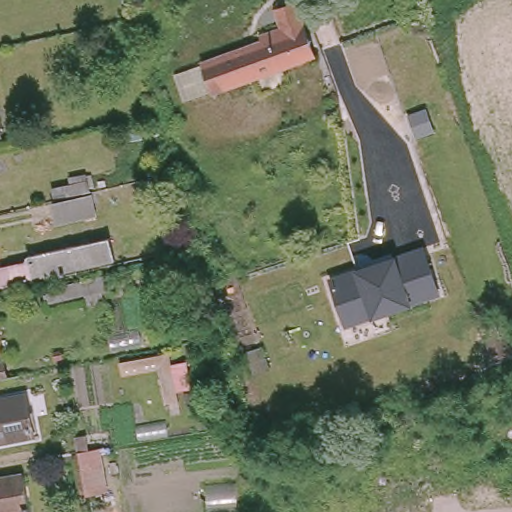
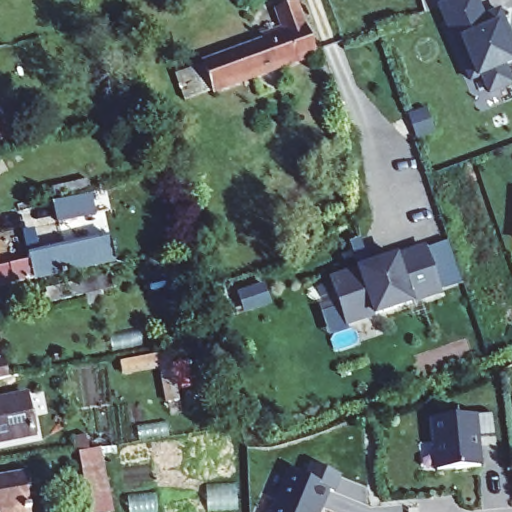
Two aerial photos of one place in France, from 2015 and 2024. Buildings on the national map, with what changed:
new [(453,0),(476,0),(483,17),(499,11),(506,28),(504,29),(507,37),(510,36),(512,42),(512,63),(504,66),(511,83),(489,92),(482,75),(470,80),(439,6),(453,0)]
unchanged [(265,41),(262,33),(282,25),(276,8),(298,1),(317,50),(217,90),(207,64),(265,41)]
unchanged [(96,206),(60,214),(57,195),(92,187),(96,206)]
unchanged [(11,267),(29,262),(28,259),(111,240),(116,263),(33,281),(15,286),(11,267)]
unchanged [(425,251),(440,296),(347,327),(332,282),(425,251)]
unchanged [(171,355),(180,402),(169,404),(161,369),(123,376),(121,365),(171,355)]
unchanged [(0,357),(5,356),(9,376),(0,377),(0,357)]
unchanged [(33,434),(0,440),(0,397),(26,392),(33,434)]
new [(432,470),(429,421),(477,416),(491,416),(493,439),(479,440),(482,465),(432,470)]
unchanged [(107,466),(112,490),(91,494),(87,470),(107,466)]
new [(307,482),(313,468),(341,479),(335,494),(330,492),(323,510),(322,512),(274,512),(289,475),(307,482)]
unchanged [(25,509),(25,512),(0,512),(0,474),(19,471),(25,509)]

